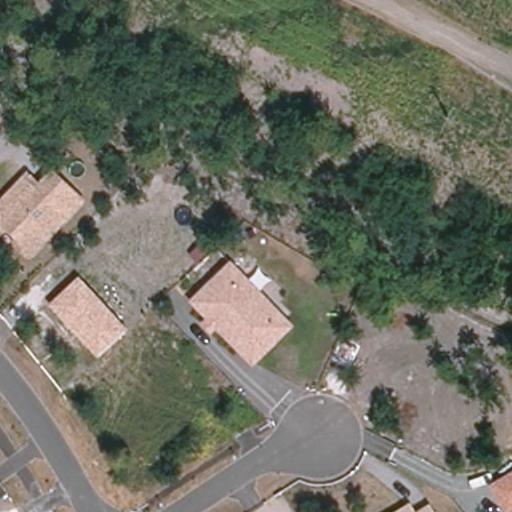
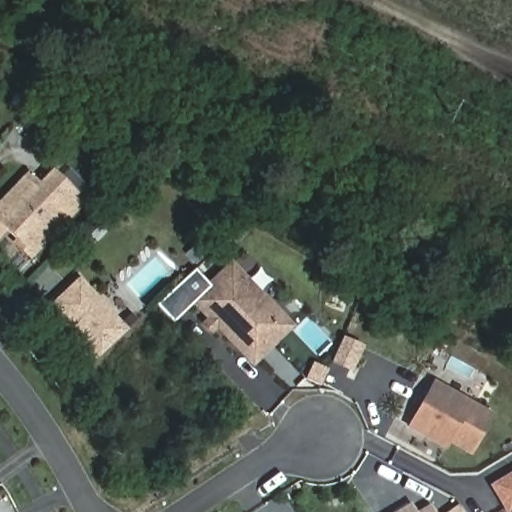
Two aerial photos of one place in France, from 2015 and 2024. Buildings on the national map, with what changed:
unchanged [(34,258),(6,232),(0,238),(0,199),(26,172),(36,183),(52,167),(87,200),(34,258)]
unchanged [(252,367),(217,329),(213,334),(201,322),(205,317),(189,300),(231,259),(294,326),(252,367)]
unchanged [(96,357),(49,305),(78,276),(127,329),(96,357)]
new [(340,339),(359,348),(348,371),(329,363),(340,339)]
new [(408,427),(434,380),(495,414),(472,456),(450,444),(446,449),(408,427)]
unchanged [(488,484),(512,470),(512,509),(508,512),(503,512),(488,484)]
unchanged [(415,512),(431,503),(436,512),(392,512),(409,502),(415,512)]
new [(459,504),(464,512),(448,512),(459,504)]

